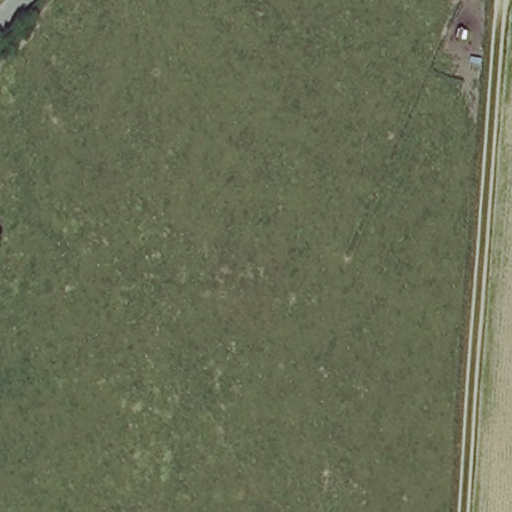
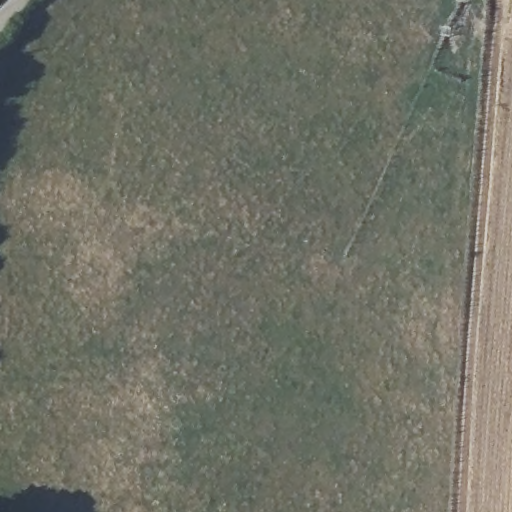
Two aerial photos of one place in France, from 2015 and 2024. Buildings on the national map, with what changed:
[]

